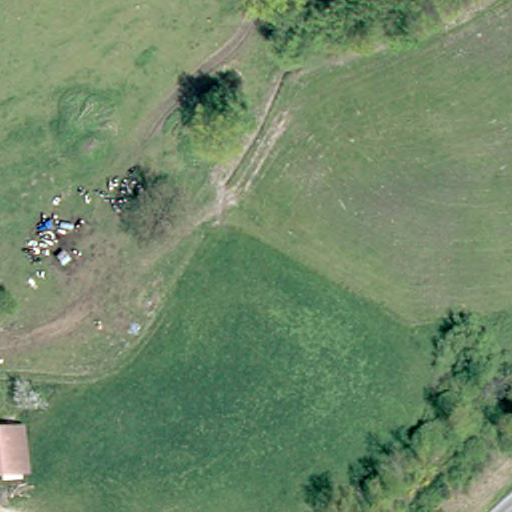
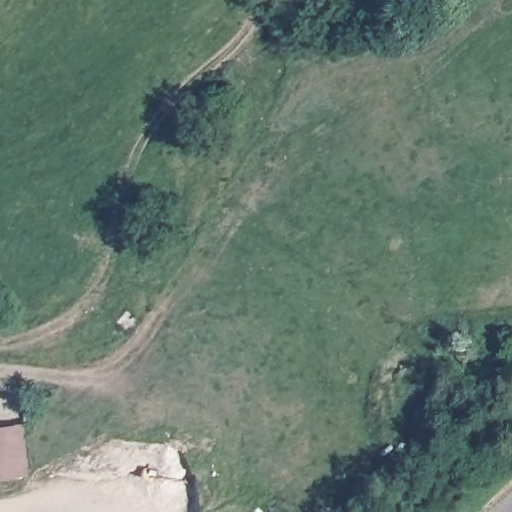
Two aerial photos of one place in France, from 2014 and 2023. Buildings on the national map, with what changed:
unchanged [(21,431),(25,462),(27,474),(0,478),(0,434),(21,431)]

